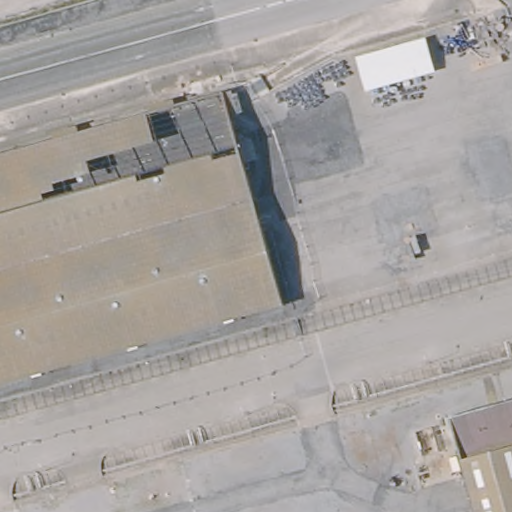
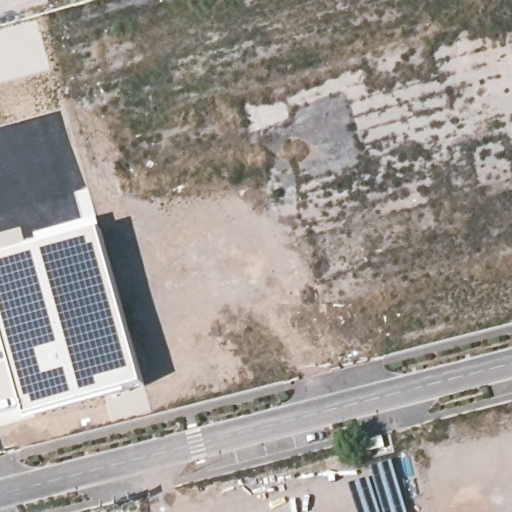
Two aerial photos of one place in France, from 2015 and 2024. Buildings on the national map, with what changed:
demolished [(0,383),(0,158),(228,93),(285,303),(0,383)]
new [(37,236),(100,219),(103,231),(146,386),(31,420),(0,315),(0,258),(41,248),(37,236)]
demolished [(445,415),(512,396),(512,512),(471,512),(445,415)]

